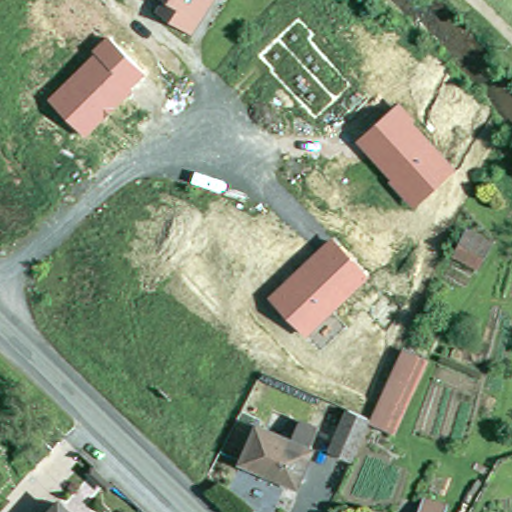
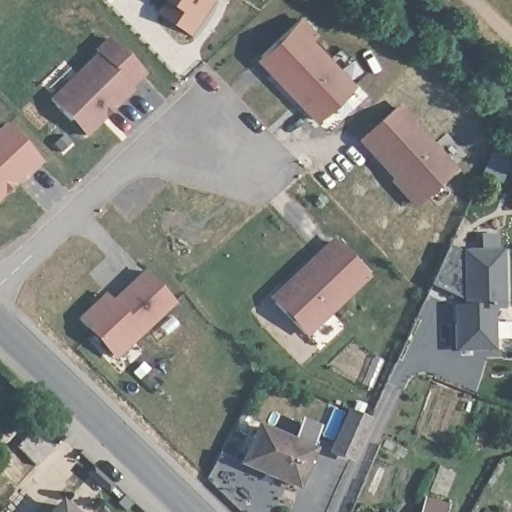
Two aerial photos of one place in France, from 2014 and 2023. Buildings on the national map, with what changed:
new [(157,11),(162,0),(213,0),(192,35),(157,11)]
demolished [(175,16),(183,5),(176,0),(211,0),(210,3),(213,6),(203,20),(211,25),(203,36),(175,16)]
new [(354,84),(315,121),(255,59),(301,15),(318,33),(312,38),(354,84)]
unchanged [(146,72),(133,86),(135,90),(85,136),(47,98),(94,53),(91,49),(107,35),(146,72)]
unchanged [(416,121),(413,124),(456,173),(412,210),(388,182),(389,180),(355,143),(401,103),(416,121)]
new [(40,161),(26,174),(23,172),(0,193),(0,131),(6,125),(40,161)]
unchanged [(368,278),(304,338),(267,298),(330,239),(368,278)]
new [(461,250),(501,248),(504,307),(492,308),(496,350),(454,352),(452,305),(462,304),(461,298),(429,285),(447,245),(461,250)]
demolished [(472,248),(495,259),(487,277),(463,266),(472,248)]
new [(175,302),(116,359),(79,316),(105,292),(111,299),(143,269),(175,302)]
new [(353,462),(328,451),(347,409),(370,418),(353,462)]
unchanged [(295,446),(304,426),(320,434),(311,453),(314,455),(298,493),(245,466),(262,430),(295,446)]
demolished [(52,474),(33,455),(51,438),(69,457),(52,474)]
unchanged [(77,512),(66,512),(72,507),(77,512)]

